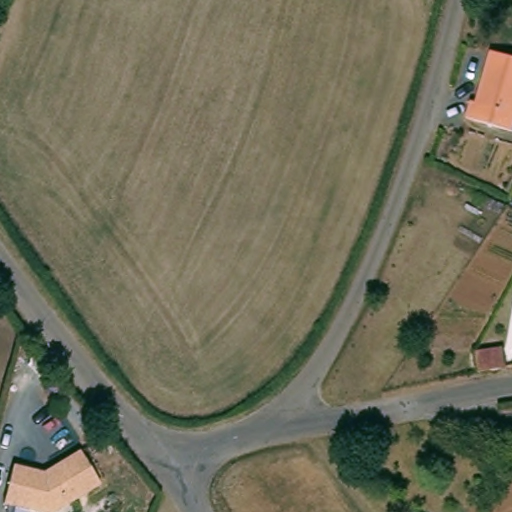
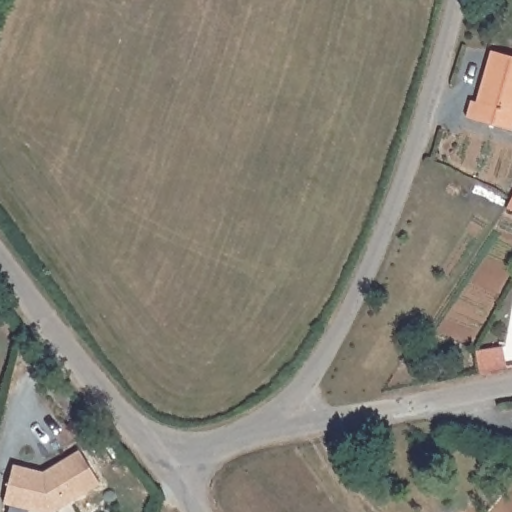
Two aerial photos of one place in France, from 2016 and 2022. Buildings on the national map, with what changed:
unchanged [(512,55),(512,130),(465,120),(469,101),(474,102),(485,49),(512,55)]
unchanged [(512,364),(512,366),(486,371),(478,351),(506,345),(512,364)]
unchanged [(76,450),(96,488),(51,512),(34,512),(0,503),(0,501),(10,465),(40,472),(76,450)]

